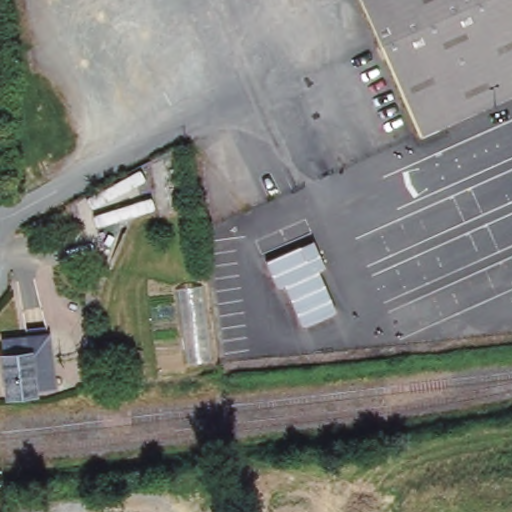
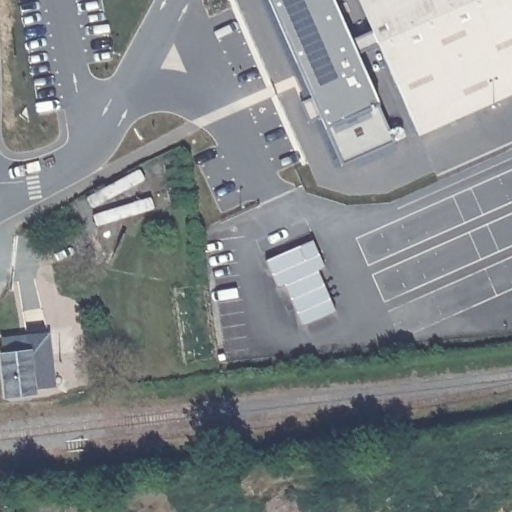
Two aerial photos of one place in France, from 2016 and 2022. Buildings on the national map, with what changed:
new [(342,163),(321,115),(310,121),(301,102),(312,97),(269,0),(332,0),(355,51),(393,141),(342,163)]
unchanged [(415,131),(371,29),(358,0),(512,0),(512,89),(415,131)]
unchanged [(318,240),(330,268),(323,271),(341,312),(317,322),(307,327),(306,324),(290,286),(282,289),(270,261),(318,240)]
unchanged [(57,386),(37,389),(3,395),(0,366),(0,337),(47,331),(57,386)]

